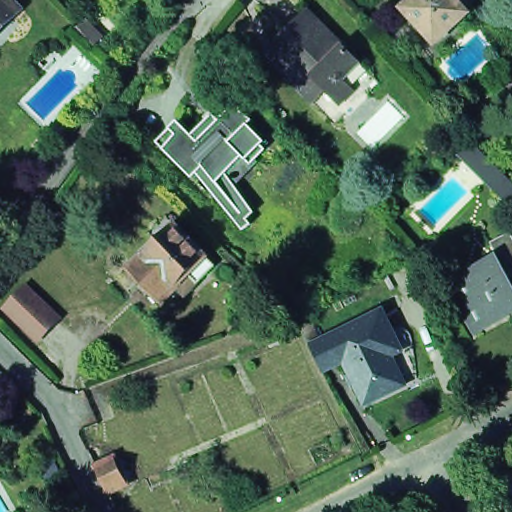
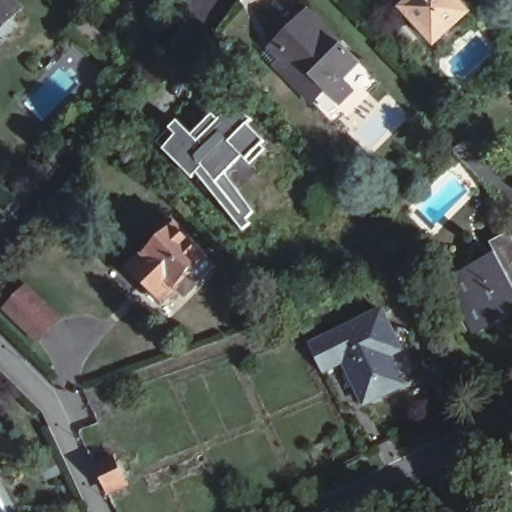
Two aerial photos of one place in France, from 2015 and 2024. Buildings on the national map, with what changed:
unchanged [(22,0),(26,4),(1,30),(0,29),(0,0),(22,0)]
unchanged [(464,0),(469,6),(468,11),(470,13),(436,44),(404,8),(413,0),(464,0)]
unchanged [(308,13),(340,46),(343,45),(360,61),(343,78),(354,89),(339,104),(327,91),(315,103),(289,76),(301,64),(279,41),(308,13)]
unchanged [(87,19),(105,37),(96,46),(78,28),(87,19)]
unchanged [(228,114),(236,106),(254,120),(249,125),(266,141),(262,146),(267,150),(251,165),(244,156),(227,174),(255,212),(248,219),(251,224),(244,230),(198,173),(193,178),(157,141),(179,121),(193,135),(214,114),(220,120),(227,113),(228,114)]
unchanged [(512,183),(512,202),(488,178),(484,181),(453,150),(469,140),(512,183)]
unchanged [(138,260),(139,255),(143,251),(148,251),(149,252),(163,238),(154,229),(173,211),(182,220),(182,219),(214,252),(213,252),(222,261),(204,279),(191,291),(183,282),(167,297),(135,265),(139,261),(138,260)]
unchanged [(492,243),(512,232),(512,233),(512,303),(473,324),(449,279),(498,254),(492,243)]
unchanged [(18,292),(50,324),(29,345),(0,317),(0,310),(18,292)]
unchanged [(311,344),(313,347),(384,312),(394,333),(383,338),(405,385),(367,403),(346,361),(325,371),(326,374),(325,375),(310,344),(311,344)]
unchanged [(310,323),(318,340),(310,343),(302,327),(310,323)]
unchanged [(115,457),(128,484),(109,493),(97,466),(115,457)]
unchanged [(55,460),(60,473),(50,478),(44,465),(55,460)]

